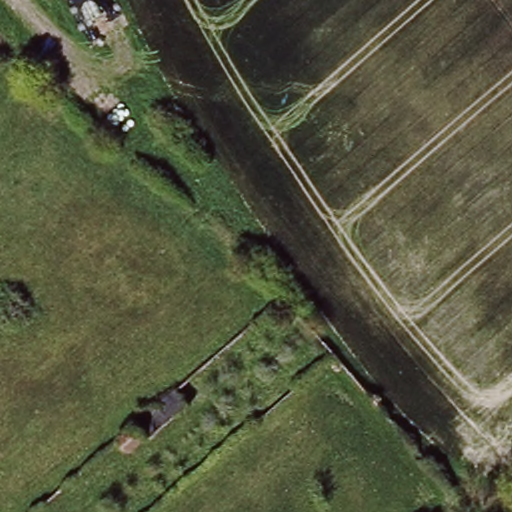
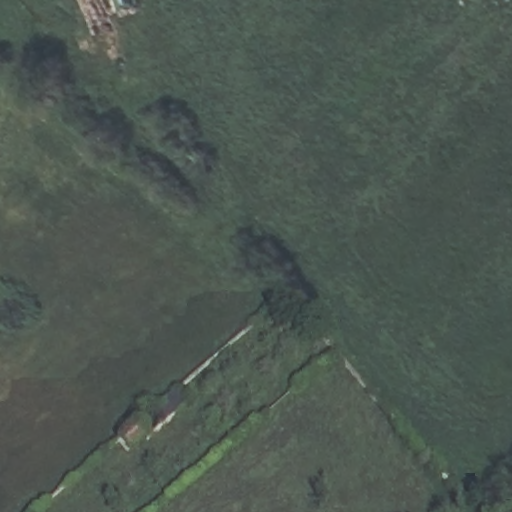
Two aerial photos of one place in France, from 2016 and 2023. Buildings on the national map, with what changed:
unchanged [(192,402),(128,458),(108,433),(171,380),(192,402)]

